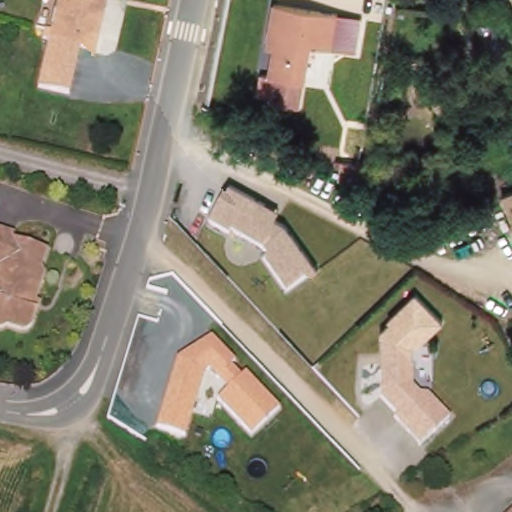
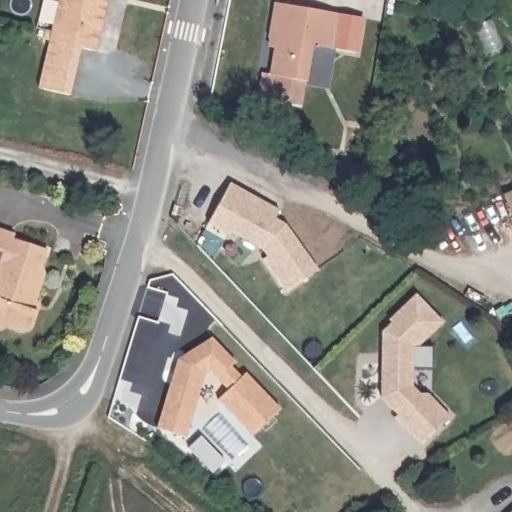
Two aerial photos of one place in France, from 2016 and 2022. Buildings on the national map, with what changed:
unchanged [(49,40),(58,0),(109,0),(108,2),(97,52),(49,40)]
unchanged [(314,50),(305,82),(304,82),(298,107),(269,100),(275,76),(269,75),(276,42),(267,40),(277,1),(341,15),(333,55),(314,50)]
unchanged [(341,15),(366,20),(358,60),(333,55),(341,15)]
unchanged [(79,47),(67,97),(36,90),(49,40),(79,47)]
unchanged [(341,159),(358,161),(354,189),(344,184),(336,179),(341,159)]
unchanged [(229,182),(279,210),(273,218),(284,223),(318,271),(285,292),(261,258),(266,255),(262,250),(232,233),(226,235),(206,223),(229,182)]
unchanged [(500,196),(512,191),(512,221),(511,221),(500,196)]
unchanged [(12,237),(49,246),(45,265),(48,280),(42,308),(46,311),(42,323),(30,329),(17,326),(15,330),(0,326),(0,227),(14,231),(12,237)]
unchanged [(380,331),(390,322),(387,318),(415,294),(442,323),(416,346),(411,344),(410,385),(418,393),(426,392),(448,417),(419,445),(391,416),(394,412),(379,397),(380,331)]
unchanged [(175,360),(210,338),(234,362),(228,366),(240,377),(244,372),(279,409),(250,435),(216,399),(225,390),(207,371),(202,373),(184,437),(155,429),(175,360)]

